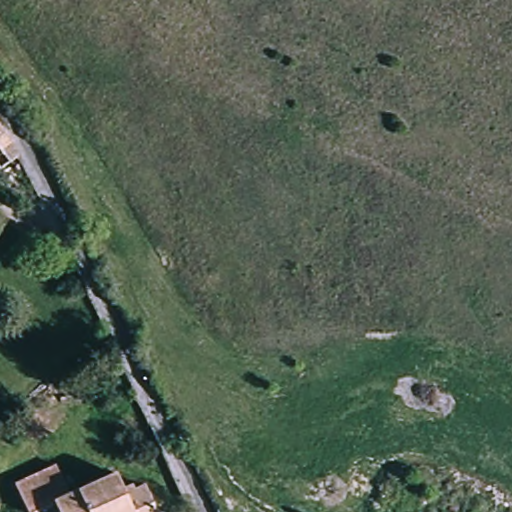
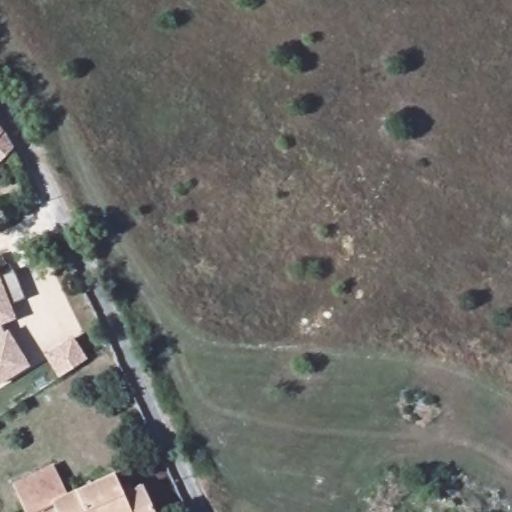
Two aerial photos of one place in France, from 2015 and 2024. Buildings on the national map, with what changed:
unchanged [(14,166),(0,174),(0,142),(8,154),(14,166)]
new [(25,299),(9,305),(15,320),(0,326),(0,277),(13,271),(25,299)]
new [(7,330),(30,366),(0,383),(0,326),(3,332),(7,330)]
new [(73,338),(84,360),(57,373),(46,352),(73,338)]
unchanged [(50,510),(44,512),(23,512),(12,487),(50,466),(60,496),(112,472),(127,491),(142,483),(154,512),(51,512),(50,510)]

